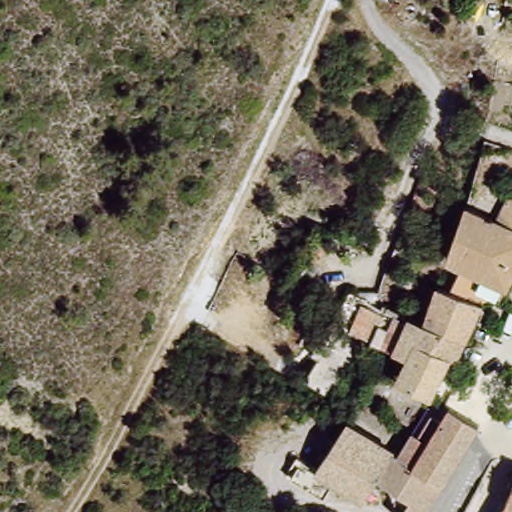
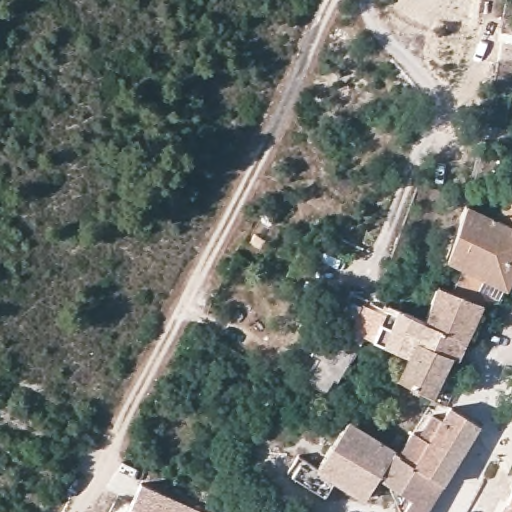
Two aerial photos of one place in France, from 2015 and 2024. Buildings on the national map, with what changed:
unchanged [(512,227),(512,284),(505,295),(447,265),(451,257),(441,253),(448,235),(460,240),(475,209),(482,211),(505,224),(512,227)]
unchanged [(512,213),(512,227),(505,224),(512,213)]
unchanged [(505,295),(502,301),(480,310),(436,288),(447,265),(505,295)]
unchanged [(387,380),(402,353),(367,334),(378,315),(400,327),(401,324),(408,313),(401,309),(413,297),(418,297),(430,303),(436,288),(480,310),(459,341),(450,355),(426,394),(416,391),(413,393),(387,380)]
unchanged [(415,458),(447,400),(477,413),(446,474),(415,458)]
unchanged [(388,483),(375,478),(362,494),(304,465),(307,459),(318,440),(333,418),(415,458),(446,474),(426,512),(405,512),(405,509),(386,488),(388,483)]
new [(141,484),(204,512),(128,512),(141,484)]
unchanged [(512,502),(512,512),(506,512),(512,502)]

